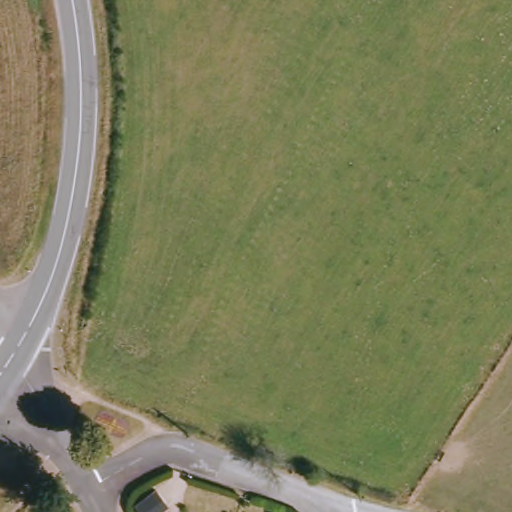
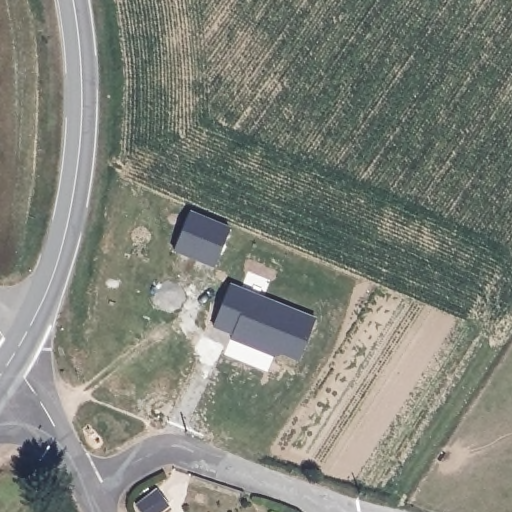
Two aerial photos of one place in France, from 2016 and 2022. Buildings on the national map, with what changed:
new [(175,250),(190,211),(228,227),(214,266),(175,250)]
new [(230,283),(315,317),(299,361),(281,353),(274,355),(232,339),(233,335),(213,326),(230,283)]
unchanged [(157,512),(149,512),(137,505),(150,483),(167,493),(157,512)]
unchanged [(191,512),(184,512),(185,510),(191,512)]

